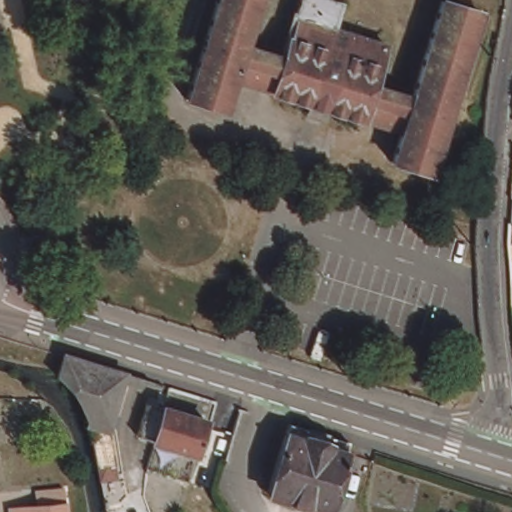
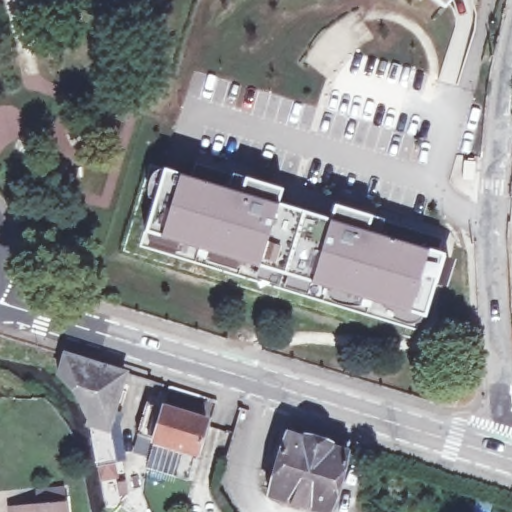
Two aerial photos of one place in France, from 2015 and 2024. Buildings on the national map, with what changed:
demolished [(279,54),(296,0),(329,0),(339,3),(327,44),(339,49),(344,33),(381,44),(370,81),(410,92),(437,0),(475,11),(427,174),(390,162),(398,132),(322,110),(307,105),(263,92),(230,83),(220,112),(183,100),(213,0),(255,0),(242,42),(279,54)]
new [(436,0),(447,0),(442,5),(436,0)]
new [(178,173),(191,176),(195,163),(243,178),(281,189),(275,202),(327,218),(333,205),(369,215),(366,228),(428,248),(441,252),(441,253),(423,315),(408,311),(310,281),(259,266),(160,235),(145,230),(163,169),(178,173)]
new [(417,341),(123,250),(150,166),(163,169),(145,230),(160,235),(259,266),(310,281),(408,311),(423,315),(417,341)]
new [(428,248),(366,228),(369,215),(445,237),(441,253),(428,248)]
unchanged [(50,245),(55,248),(58,259),(52,257),(31,250),(35,240),(50,245)]
unchanged [(99,463),(95,447),(93,440),(90,429),(85,417),(78,404),(70,392),(57,376),(60,369),(64,354),(125,373),(108,425),(116,461),(99,463)]
unchanged [(212,408),(215,437),(202,432),(200,436),(197,435),(188,460),(146,446),(129,440),(128,440),(132,430),(140,408),(153,412),(160,392),(212,408)]
unchanged [(347,452),(328,512),(268,493),(275,473),(290,424),(345,441),(350,442),(347,452)]
unchanged [(12,511),(40,508),(39,492),(62,490),(64,505),(65,512),(13,512),(12,511)]

